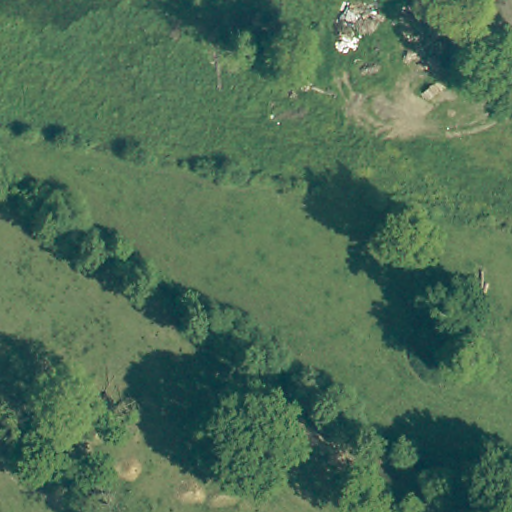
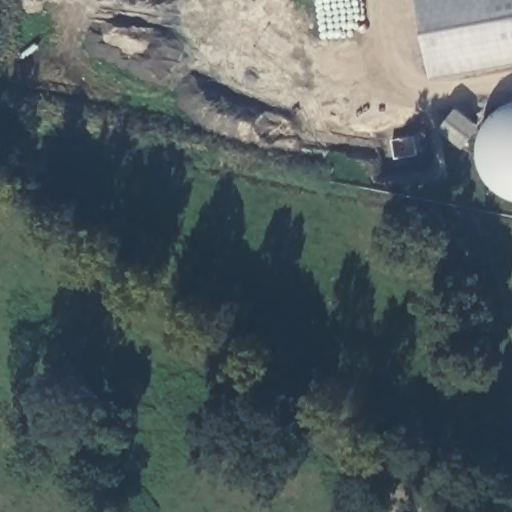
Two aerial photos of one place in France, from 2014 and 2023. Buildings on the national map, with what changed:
new [(432,77),(418,0),(512,0),(512,63),(432,77)]

